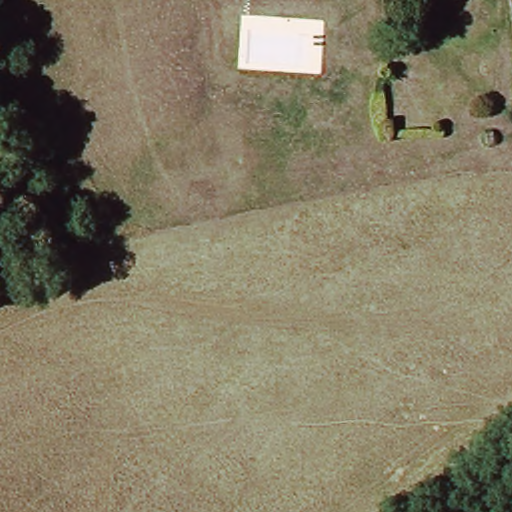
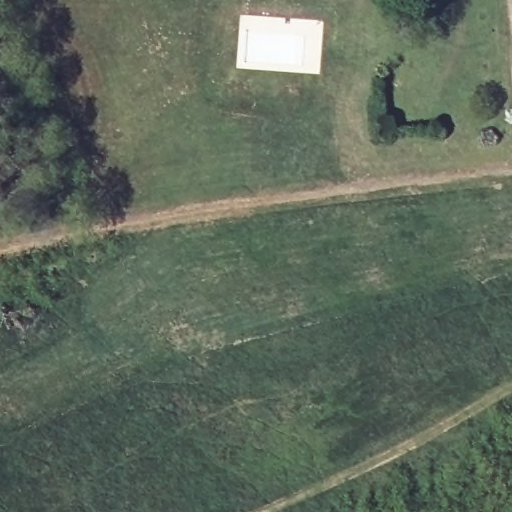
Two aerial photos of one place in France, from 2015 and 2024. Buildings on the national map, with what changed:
unchanged [(400,12),(412,16),(407,29),(395,24),(400,12)]

